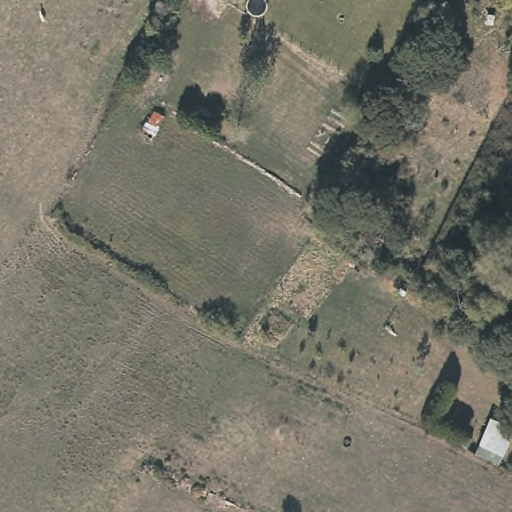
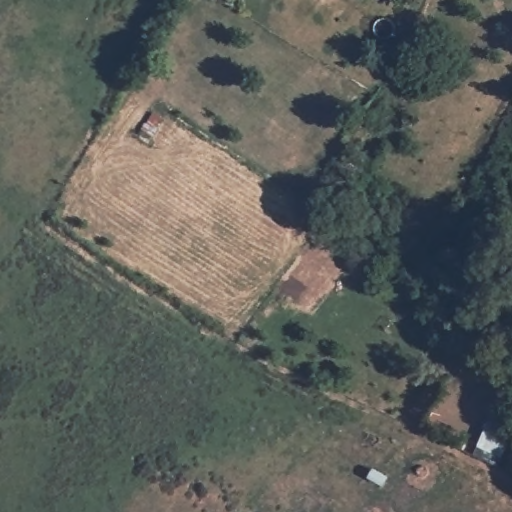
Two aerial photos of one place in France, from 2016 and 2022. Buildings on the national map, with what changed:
unchanged [(139,133),(153,109),(167,117),(152,139),(139,133)]
unchanged [(475,445),(486,414),(512,426),(512,441),(506,459),(475,445)]

